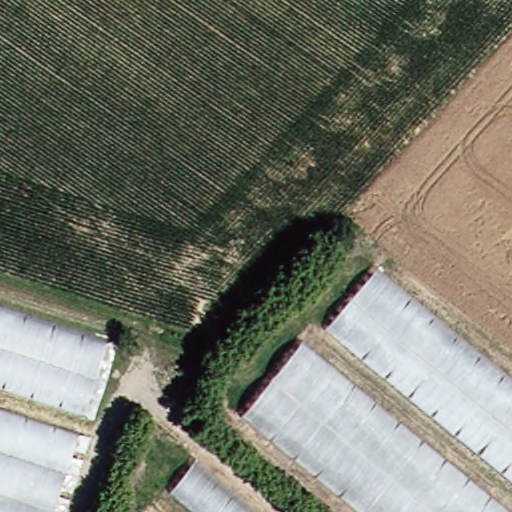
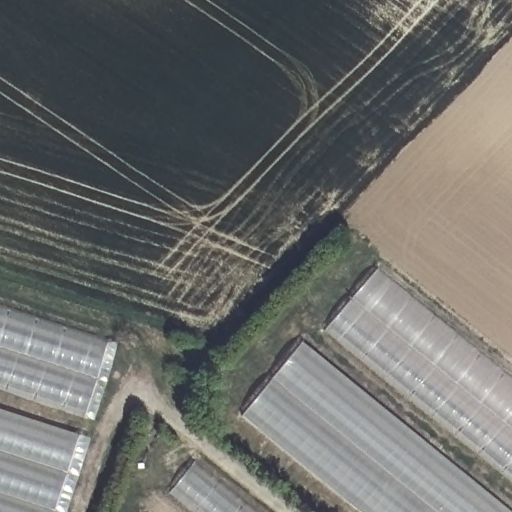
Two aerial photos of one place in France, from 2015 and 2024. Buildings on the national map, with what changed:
unchanged [(370,274),(512,387),(512,482),(323,332),(370,274)]
unchanged [(81,414),(0,389),(0,309),(103,342),(81,414)]
unchanged [(227,417),(289,341),(502,512),(346,512),(227,417)]
unchanged [(54,512),(0,512),(0,412),(78,437),(54,512)]
unchanged [(256,512),(201,512),(172,489),(193,463),(256,512)]

